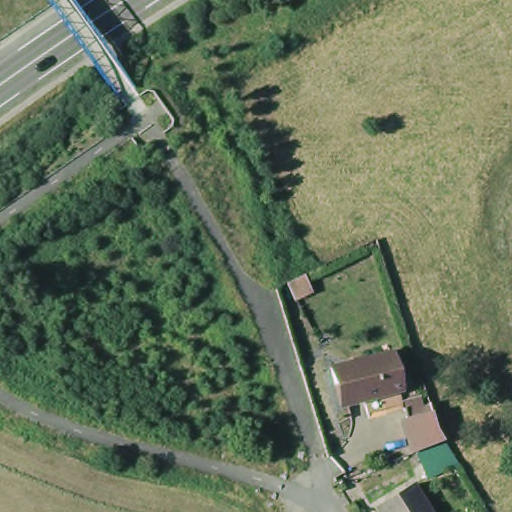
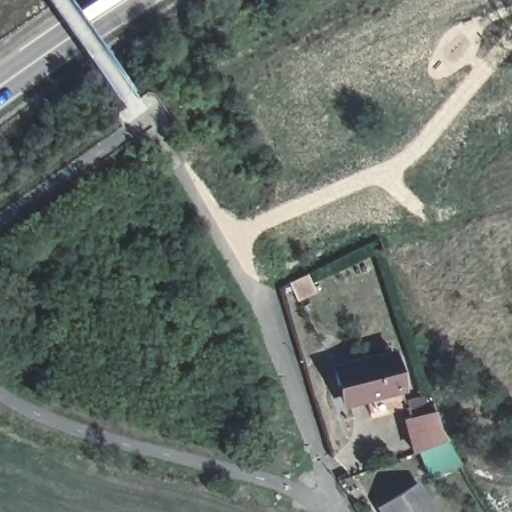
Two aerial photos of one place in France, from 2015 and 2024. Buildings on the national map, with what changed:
unchanged [(364,417),(360,404),(341,410),(335,388),(332,390),(327,372),(386,356),(396,394),(392,395),(397,407),(364,417)]
unchanged [(404,420),(401,413),(425,405),(427,413),(434,435),(439,444),(409,455),(399,422),(404,420)]
unchanged [(411,456),(440,445),(447,457),(417,470),(411,456)]
unchanged [(414,488),(428,512),(378,512),(377,510),(414,488)]

